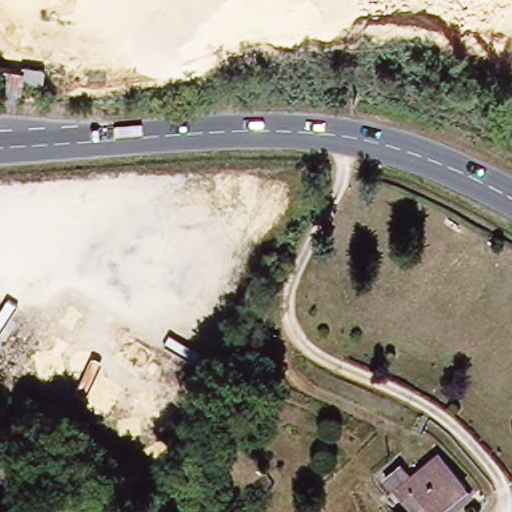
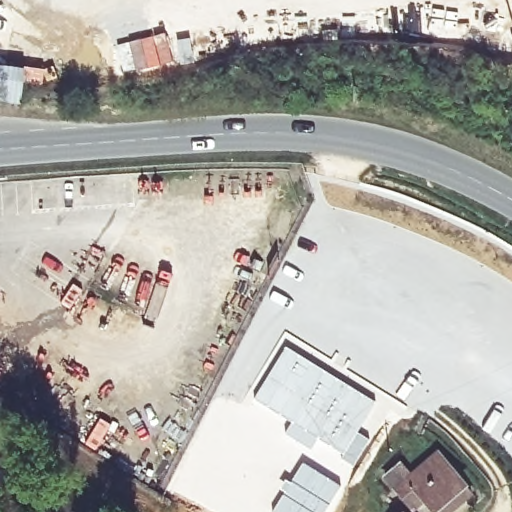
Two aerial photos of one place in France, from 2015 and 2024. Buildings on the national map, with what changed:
unchanged [(10,40),(6,62),(27,67),(22,101),(0,97),(0,38),(10,40)]
unchanged [(277,339),(267,361),(252,354),(263,332),(277,339)]
new [(286,344),(374,403),(357,430),(370,439),(354,463),(318,437),(310,448),(293,436),(297,429),(294,426),(295,425),(253,397),(286,344)]
unchanged [(419,509),(409,497),(390,476),(405,463),(415,475),(442,451),(472,484),(479,491),(455,512),(441,512),(440,511),(430,499),(419,509)]
new [(302,462),(340,485),(329,504),(324,512),(270,512),(280,491),(290,479),(302,462)]

